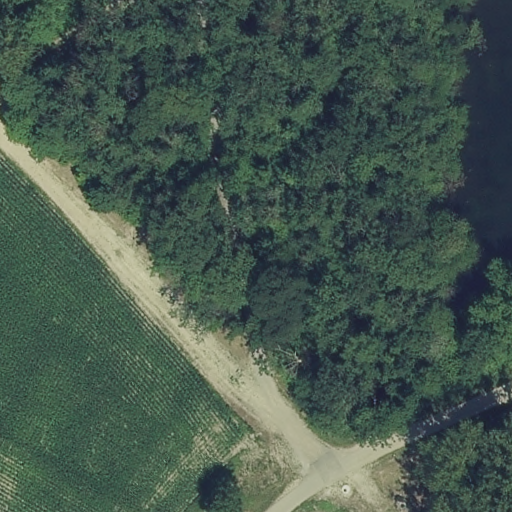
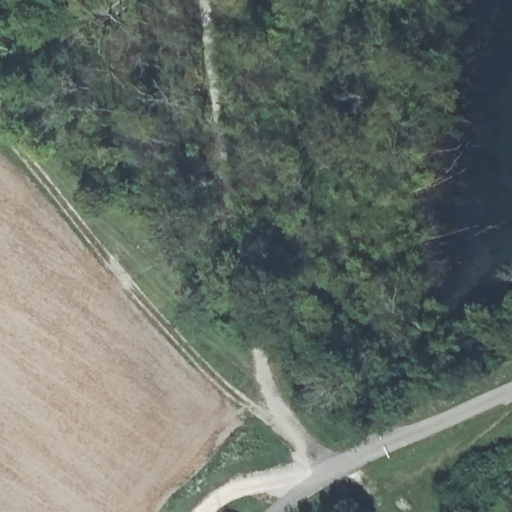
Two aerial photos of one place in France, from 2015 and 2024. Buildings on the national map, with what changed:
unchanged [(230,509),(235,512),(229,512),(230,509)]

